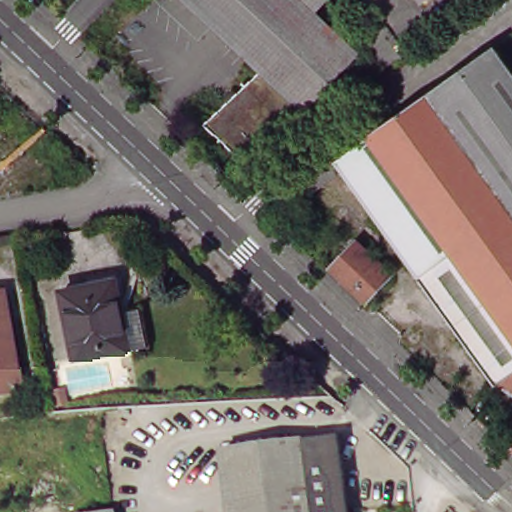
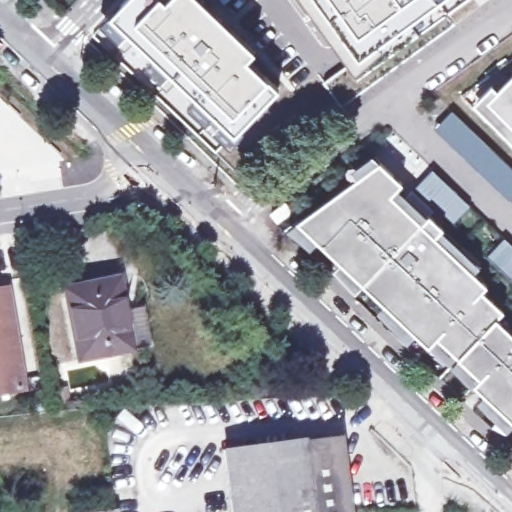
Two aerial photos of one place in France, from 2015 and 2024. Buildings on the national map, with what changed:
new [(191,100),(171,81),(165,86),(160,81),(145,67),(150,61),(130,41),(125,46),(118,40),(99,21),(107,13),(112,15),(126,0),(212,0),(207,5),(253,48),(243,56),(266,78),(277,88),(238,127),(243,131),(230,148),(187,105),(191,100)]
demolished [(360,53),(309,109),(238,154),(207,123),(259,68),(190,0),(322,0),(315,8),(360,53)]
new [(382,49),(355,72),(302,0),(440,0),(377,44),(382,49)]
demolished [(378,59),(353,24),(368,13),(375,22),(384,15),(395,30),(385,37),(393,48),(378,59)]
demolished [(498,378),(333,159),(395,115),(430,89),(435,86),(457,70),(493,43),(512,69),(512,385),(498,378)]
new [(512,74),(512,126),(482,96),(512,74)]
new [(447,108),(512,170),(512,190),(505,197),(430,126),(447,108)]
new [(400,183),(389,193),(399,203),(407,195),(481,265),(472,273),(485,285),(479,290),(501,311),(494,317),(512,334),(512,421),(504,429),(474,399),(480,394),(447,365),(414,332),(405,340),(374,310),(382,301),(362,283),(355,292),(332,270),(340,261),(317,239),(309,247),(287,228),(356,179),(348,172),(372,153),(400,183)]
new [(427,167),(465,202),(448,221),(410,185),(427,167)]
new [(287,203),(293,211),(278,222),(272,214),(287,203)]
new [(500,235),(512,246),(512,280),(483,253),(500,235)]
demolished [(370,305),(333,271),(359,245),(394,280),(370,305)]
unchanged [(80,362),(67,292),(112,283),(117,282),(123,315),(131,352),(80,362)]
unchanged [(11,320),(13,333),(19,361),(22,379),(25,392),(0,397),(0,297),(6,295),(11,320)]
unchanged [(226,453),(342,441),(352,512),(233,512),(226,453)]

